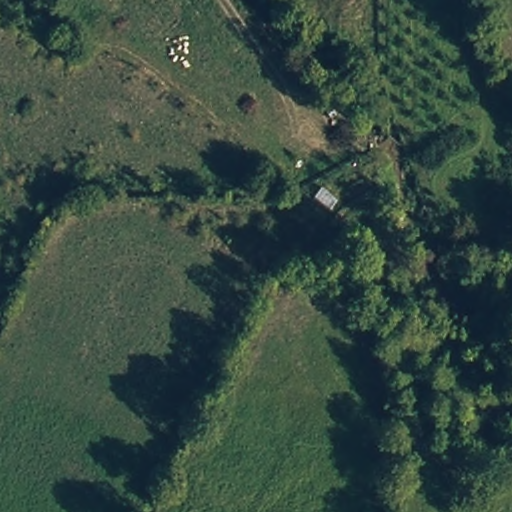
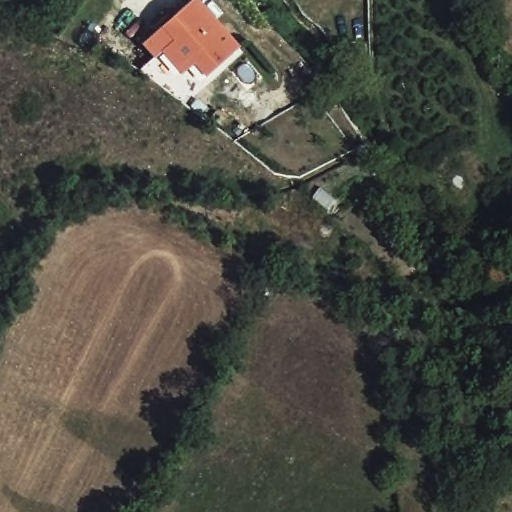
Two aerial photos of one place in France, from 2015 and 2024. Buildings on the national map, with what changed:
new [(203,80),(192,66),(179,76),(160,51),(173,41),(161,27),(195,0),(196,0),(238,52),(203,80)]

